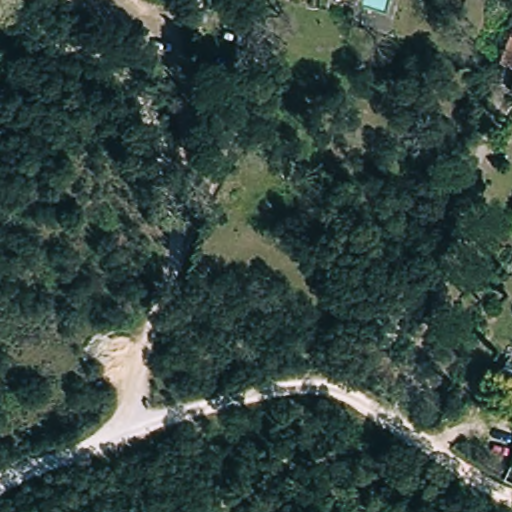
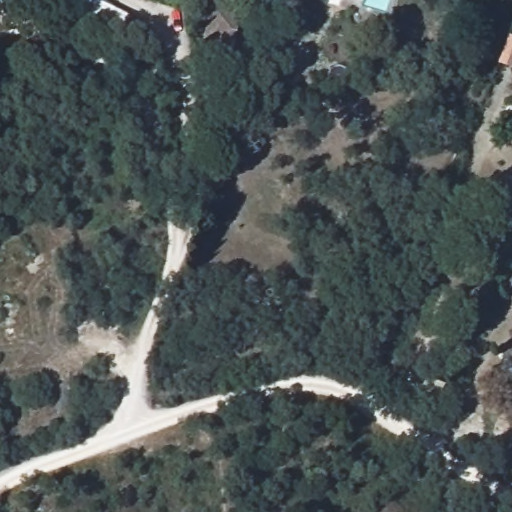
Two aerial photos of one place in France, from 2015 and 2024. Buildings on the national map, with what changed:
[]

